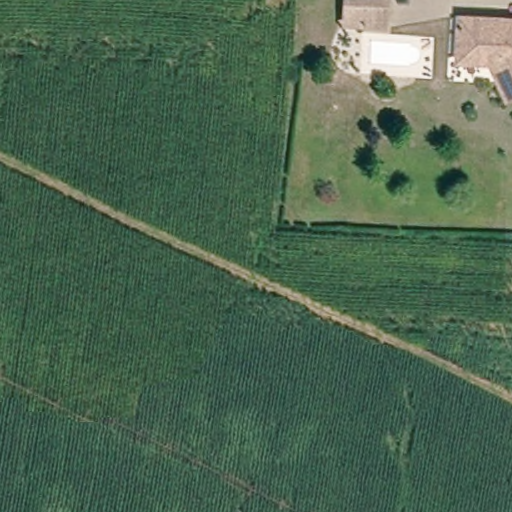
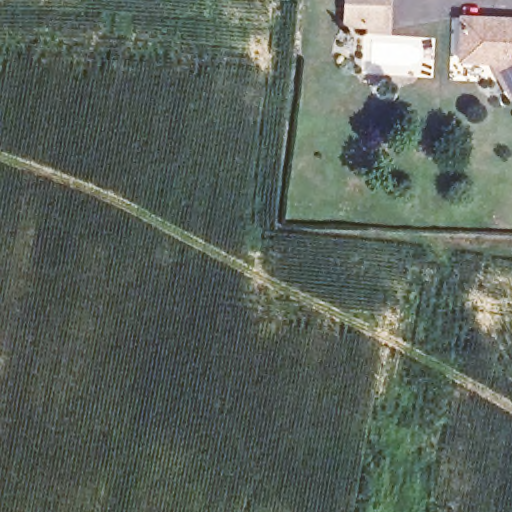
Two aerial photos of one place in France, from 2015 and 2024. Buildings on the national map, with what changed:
unchanged [(378,32),(339,30),(342,0),(381,0),(378,32)]
unchanged [(510,95),(491,57),(456,55),(459,16),(512,18),(512,94),(510,95)]

